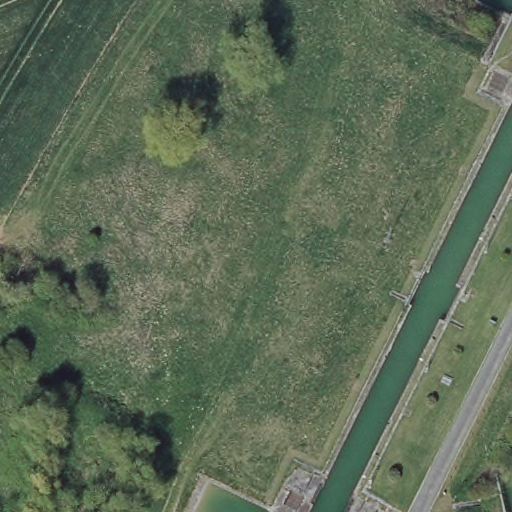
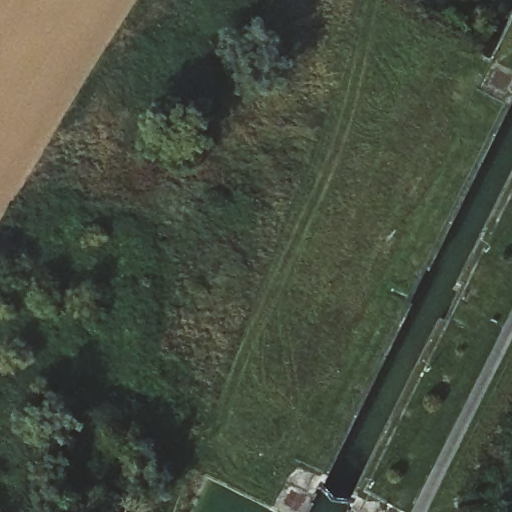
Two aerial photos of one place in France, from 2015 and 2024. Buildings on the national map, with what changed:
[]

